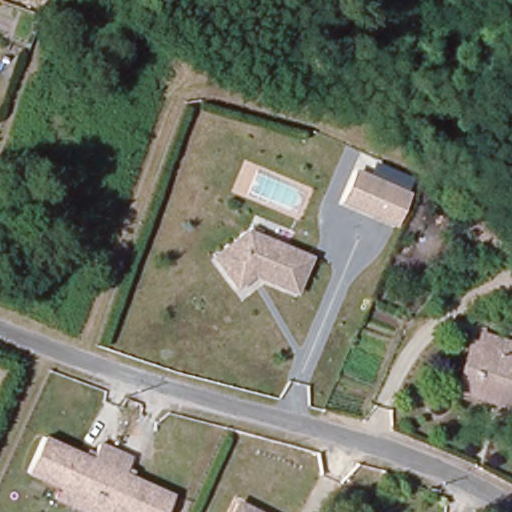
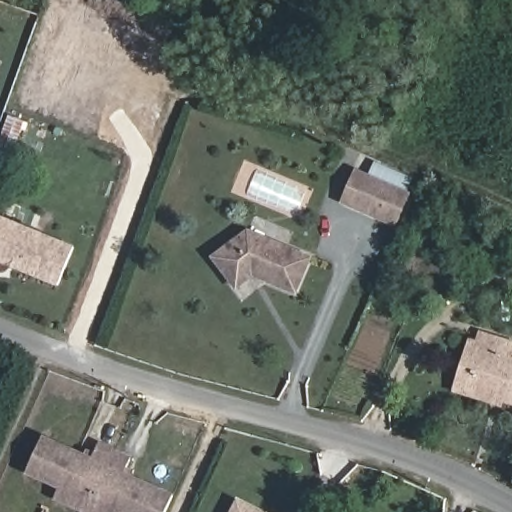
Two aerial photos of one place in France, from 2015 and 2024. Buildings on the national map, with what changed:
unchanged [(411,193),(397,226),(343,205),(357,170),(411,193)]
new [(0,262),(0,215),(75,246),(57,287),(0,262)]
unchanged [(303,255),(294,290),(250,273),(235,288),(212,261),(242,232),(303,255)]
unchanged [(465,342),(477,346),(480,335),(509,343),(509,354),(512,355),(512,403),(496,397),(495,406),(450,388),(465,342)]
unchanged [(130,477),(172,496),(165,512),(109,512),(27,480),(43,443),(88,461),(94,443),(137,459),(130,477)]
unchanged [(226,512),(232,502),(249,512),(226,512)]

